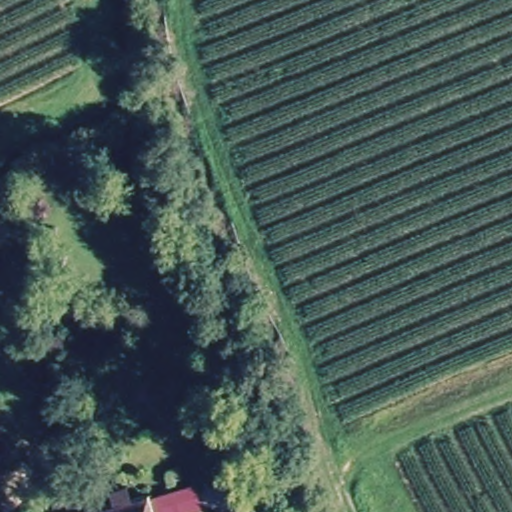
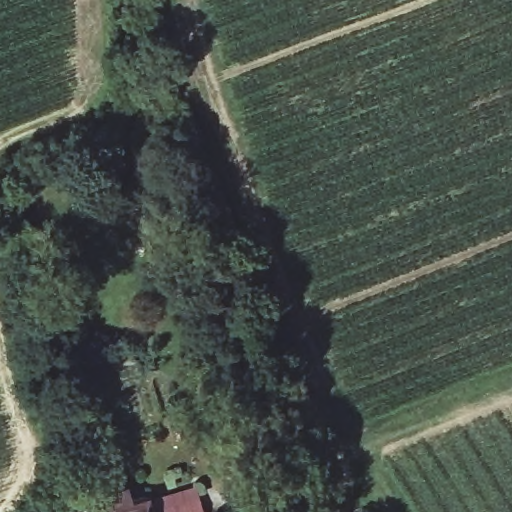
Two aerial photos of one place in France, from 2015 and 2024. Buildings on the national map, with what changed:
unchanged [(84,510),(109,504),(106,495),(131,488),(133,496),(148,493),(201,486),(206,512),(84,512),(84,510)]

